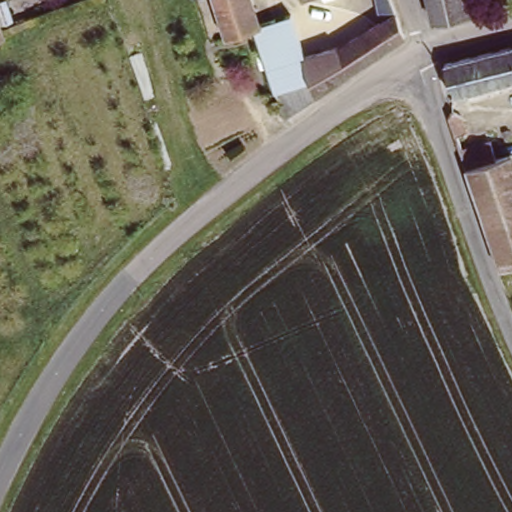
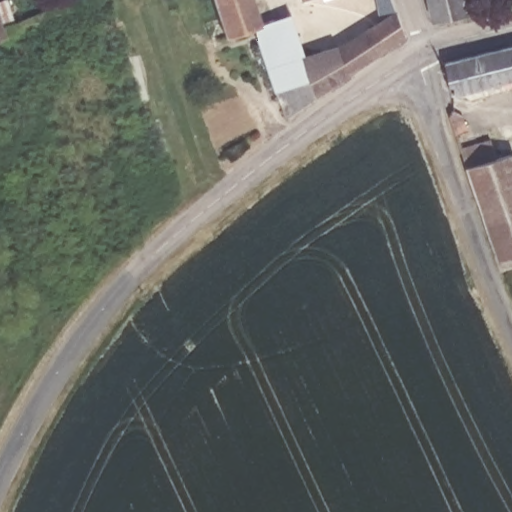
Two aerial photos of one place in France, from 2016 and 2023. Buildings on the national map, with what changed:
unchanged [(256,25),(228,34),(215,0),(255,0),(263,23),(256,25)]
unchanged [(307,52),(336,44),(381,16),(379,0),(391,0),(394,9),(404,31),(316,92),(287,112),(279,88),(273,71),(307,52)]
unchanged [(434,22),(428,2),(427,0),(470,0),(474,16),(434,22)]
unchanged [(291,12),(307,52),(273,71),(256,25),(263,23),(291,12)]
unchanged [(6,39),(0,42),(0,24),(6,39)]
unchanged [(456,88),(450,59),(512,43),(512,80),(469,94),(456,88)]
unchanged [(502,264),(499,265),(466,165),(512,151),(512,261),(502,264)]

